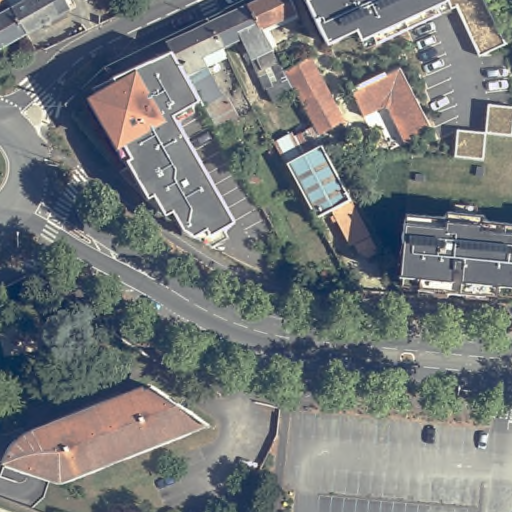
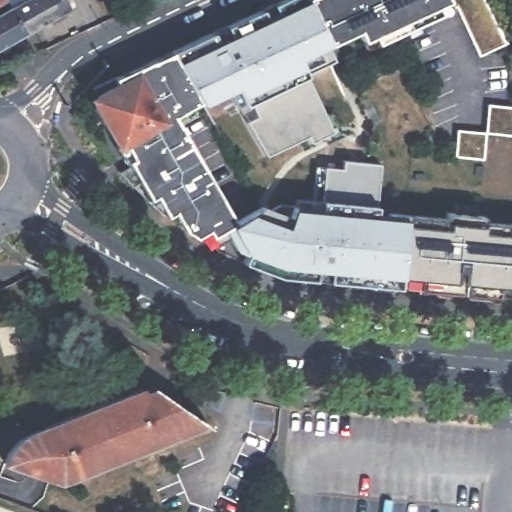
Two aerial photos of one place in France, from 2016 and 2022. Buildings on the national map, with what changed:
unchanged [(0,10),(0,0),(16,0),(17,1),(0,10)]
unchanged [(20,7),(31,0),(73,0),(79,10),(35,34),(20,7)]
new [(327,137),(312,145),(308,137),(267,157),(245,106),(241,99),(235,87),(202,100),(178,58),(299,0),(308,0),(328,42),(330,41),(336,39),(340,62),(310,79),(328,118),(336,114),(347,137),(330,145),(327,137)]
demolished [(256,0),(291,0),(297,12),(262,29),(249,4),(256,0)]
unchanged [(456,6),(438,12),(375,42),(372,33),(361,38),(357,30),(328,42),(308,0),(486,0),(497,20),(512,13),(512,37),(479,54),(456,6)]
demolished [(263,69),(257,57),(254,58),(244,37),(223,47),(211,21),(249,4),(262,29),(284,70),(315,127),(295,137),(260,70),(263,69)]
unchanged [(0,53),(0,16),(20,7),(35,34),(0,53)]
demolished [(204,104),(202,100),(174,52),(168,42),(211,21),(223,47),(202,57),(207,67),(228,103),(231,102),(240,117),(227,124),(218,129),(204,104)]
unchanged [(116,84),(113,77),(173,51),(174,52),(202,100),(173,116),(236,223),(205,240),(184,231),(174,212),(166,217),(155,197),(149,201),(126,162),(130,159),(124,148),(120,151),(90,98),(116,84)]
demolished [(315,127),(284,70),(311,56),(345,121),(319,135),(315,127)]
demolished [(379,121),(362,86),(400,67),(418,102),(405,109),(379,121)]
unchanged [(485,159),(456,156),(458,129),(485,131),(488,104),(512,107),(512,134),(487,132),(485,159)]
demolished [(336,166),(353,164),(366,192),(353,199),(381,252),(370,258),(359,252),(355,244),(352,245),(333,210),(316,219),(286,164),(276,148),(295,137),(304,155),(324,144),(336,166)]
new [(388,288),(281,277),(245,263),(248,257),(227,227),(236,223),(252,213),(264,206),(290,217),(295,207),(323,212),(323,200),(329,200),(324,166),(342,167),(344,160),(380,164),(378,207),(377,214),(395,216),(388,288)]
unchanged [(512,218),(512,300),(388,288),(396,207),(512,218)]
unchanged [(10,468),(15,457),(21,448),(30,442),(38,437),(148,394),(149,398),(160,394),(170,401),(175,413),(184,411),(195,418),(210,428),(197,434),(65,487),(10,468)]

